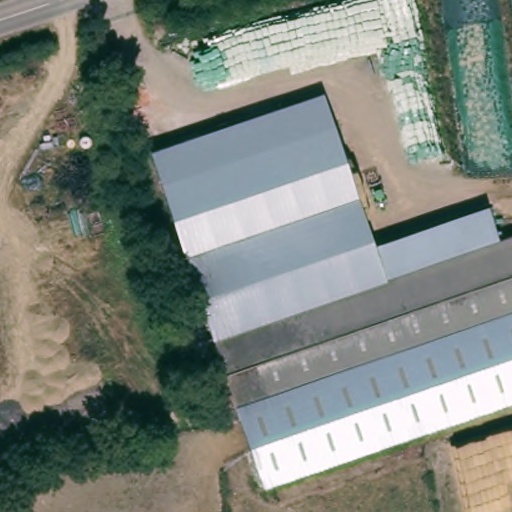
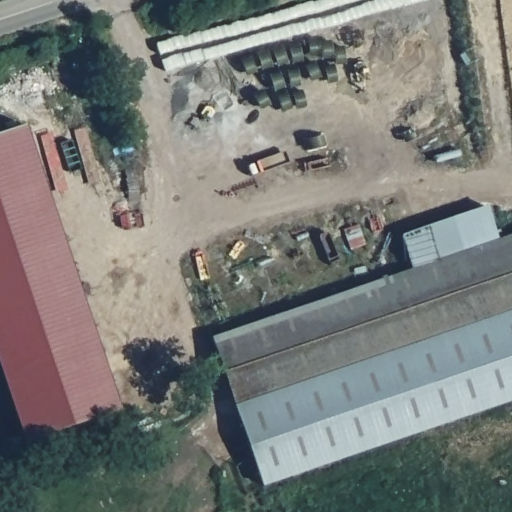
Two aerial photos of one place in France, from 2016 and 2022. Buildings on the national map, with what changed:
demolished [(151,149),(323,91),(332,125),(160,184),(151,149)]
new [(26,442),(0,365),(0,133),(26,125),(121,407),(26,442)]
demolished [(355,197),(188,257),(185,257),(160,184),(332,125),(355,197)]
demolished [(355,197),(387,279),(210,339),(188,257),(355,197)]
unchanged [(228,410),(210,339),(387,279),(512,236),(512,313),(228,410)]
unchanged [(264,485),(236,407),(512,312),(512,399),(264,485)]

